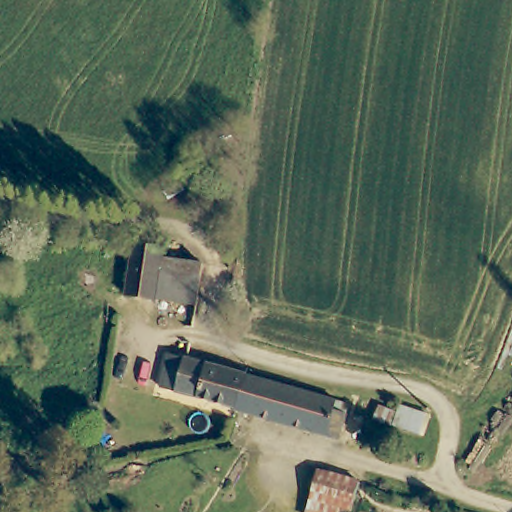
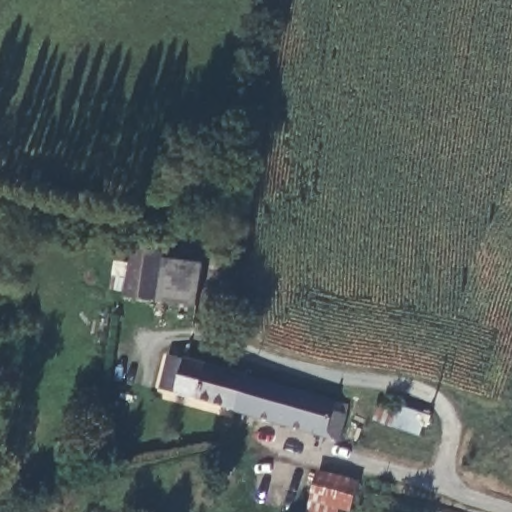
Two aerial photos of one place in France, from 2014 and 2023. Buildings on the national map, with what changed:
unchanged [(120,294),(131,246),(167,255),(165,262),(157,303),(120,294)]
unchanged [(194,312),(184,310),(157,303),(165,262),(192,267),(205,270),(194,312)]
unchanged [(157,387),(169,352),(245,375),(233,411),(157,387)]
unchanged [(245,375),(331,401),(328,417),(345,423),(340,441),(233,411),(245,375)]
unchanged [(362,486),(354,512),(307,512),(320,471),(362,486)]

